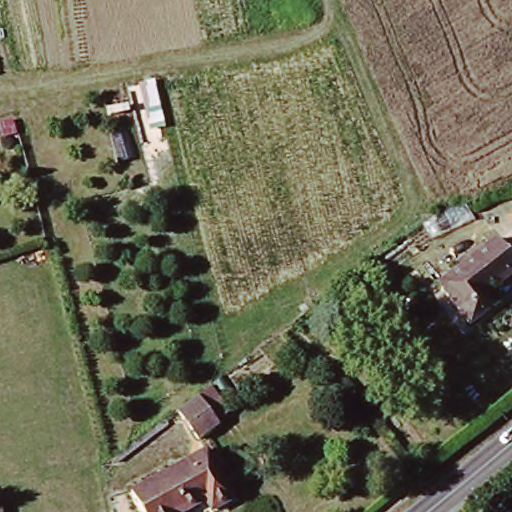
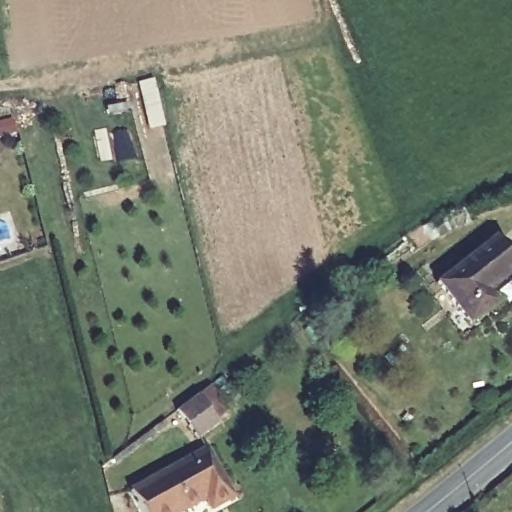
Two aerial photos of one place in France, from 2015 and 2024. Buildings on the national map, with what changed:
unchanged [(512,275),(489,293),(498,305),(466,328),(436,287),(497,241),(512,262),(512,275)]
unchanged [(218,424),(201,443),(176,410),(194,394),(218,424)]
unchanged [(204,451),(233,500),(212,512),(204,512),(199,503),(186,512),(143,512),(133,494),(187,462),(204,451)]

